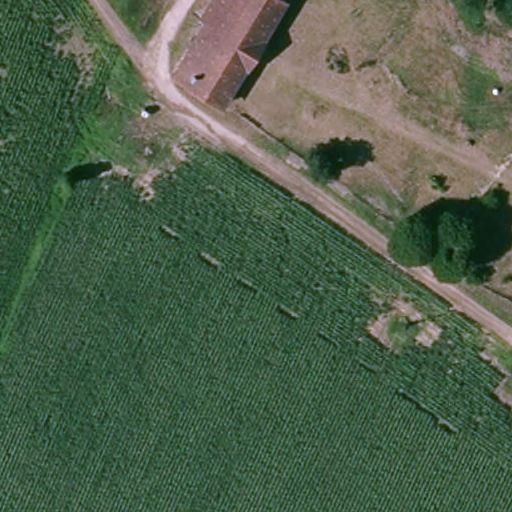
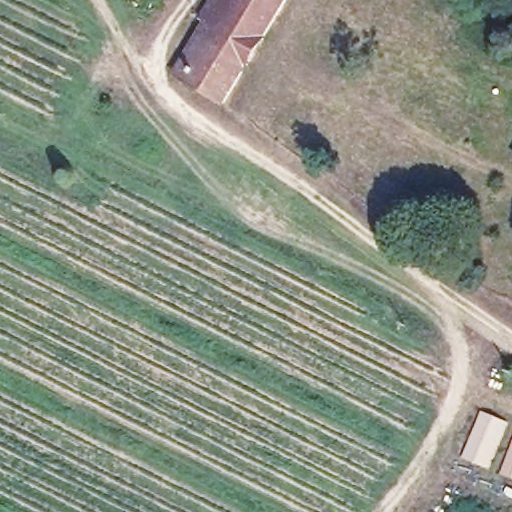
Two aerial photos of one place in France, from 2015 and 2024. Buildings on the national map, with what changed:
unchanged [(286,0),(289,2),(229,101),(180,75),(218,12),(212,9),(217,0),(286,0)]
new [(482,411),(508,422),(489,469),(462,458),(482,411)]
new [(500,475),(512,443),(512,479),(500,475)]

